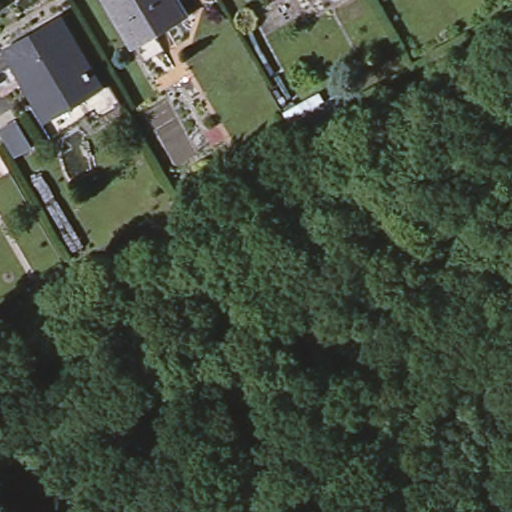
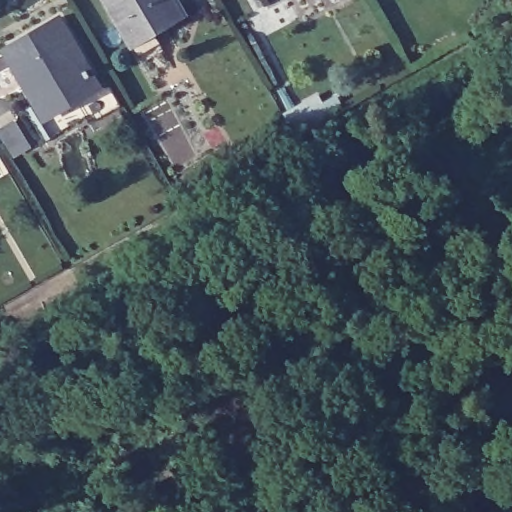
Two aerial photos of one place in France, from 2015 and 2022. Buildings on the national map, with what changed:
unchanged [(188,14),(153,35),(163,52),(144,64),(107,0),(180,0),(188,14)]
unchanged [(5,50),(59,18),(99,87),(72,104),(45,120),(37,105),(5,50)]

